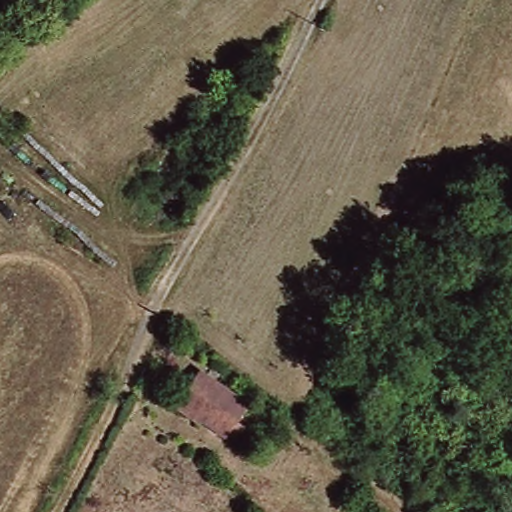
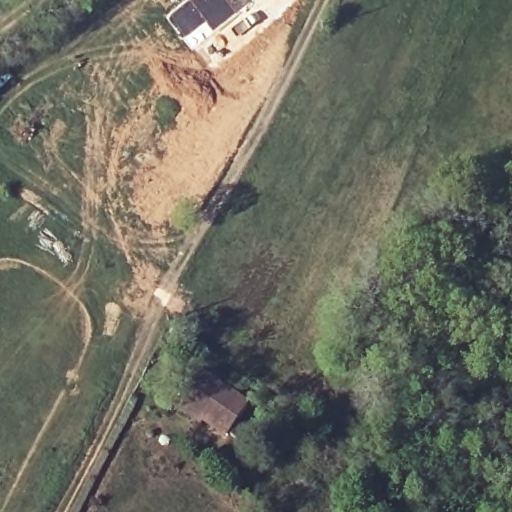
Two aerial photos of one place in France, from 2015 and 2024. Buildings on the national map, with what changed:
new [(255,0),(212,34),(205,24),(184,41),(164,16),(185,0),(255,0)]
unchanged [(175,406),(183,393),(196,371),(247,401),(228,432),(202,416),(200,420),(175,406)]

